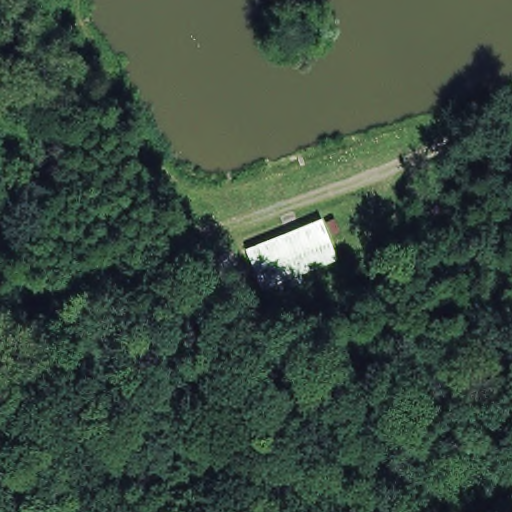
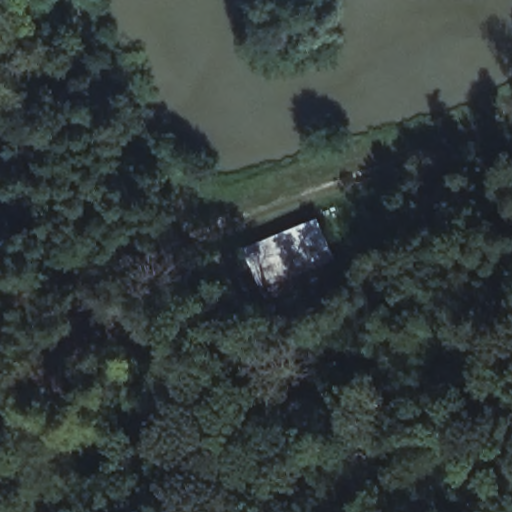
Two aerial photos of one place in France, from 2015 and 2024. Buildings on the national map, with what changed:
unchanged [(247,247),(317,214),(336,252),(263,280),(247,247)]

